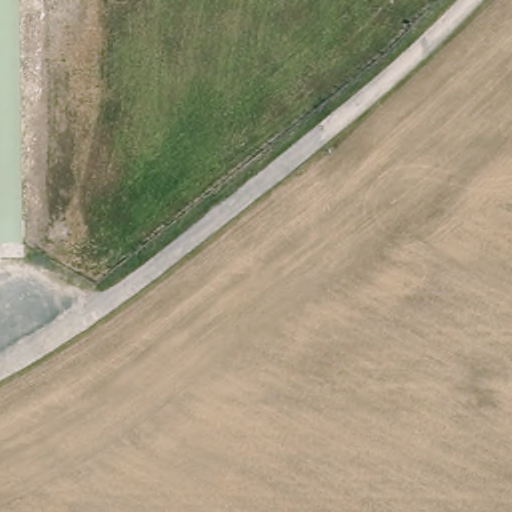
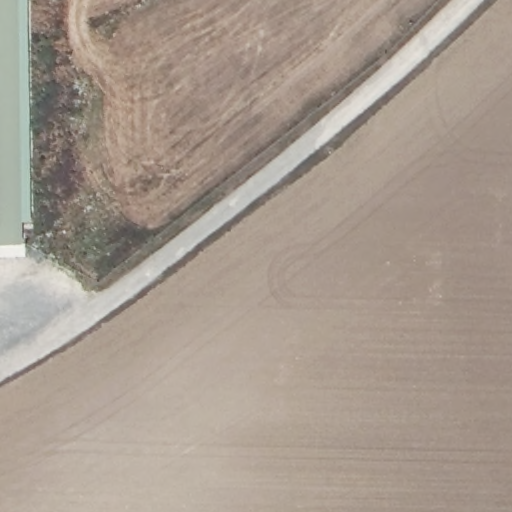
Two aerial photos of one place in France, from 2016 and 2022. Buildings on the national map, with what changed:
unchanged [(15,247),(0,248),(0,0),(11,0),(15,247)]

